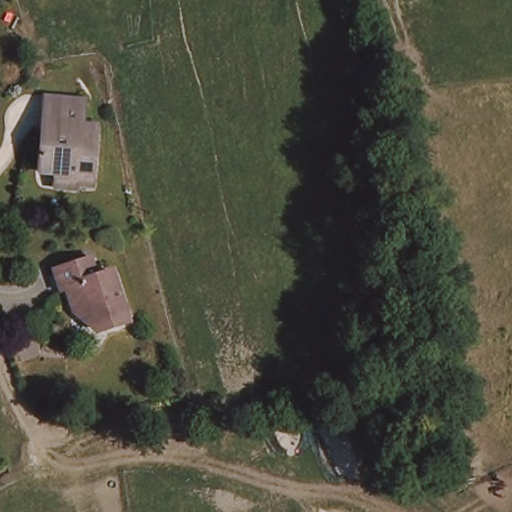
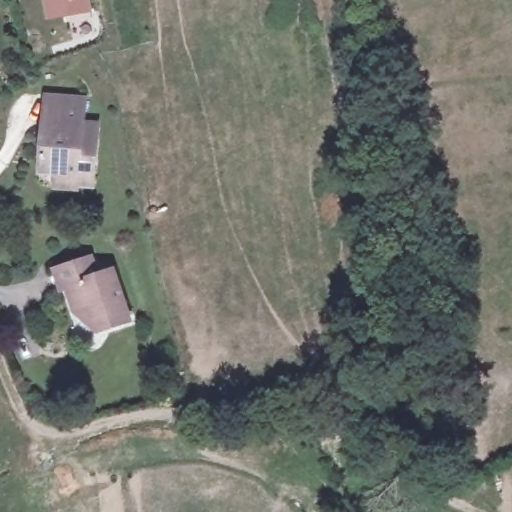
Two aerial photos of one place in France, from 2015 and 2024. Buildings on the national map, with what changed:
new [(46,21),(42,0),(90,0),(92,11),(46,21)]
unchanged [(57,177),(37,175),(39,156),(43,156),(44,146),(39,146),(40,118),(36,118),(37,99),(77,101),(77,119),(77,125),(93,125),(93,189),(75,188),(57,188),(57,177)]
unchanged [(69,297),(63,298),(58,279),(95,268),(100,284),(117,280),(133,332),(115,338),(113,332),(97,335),(77,322),(69,297)]

